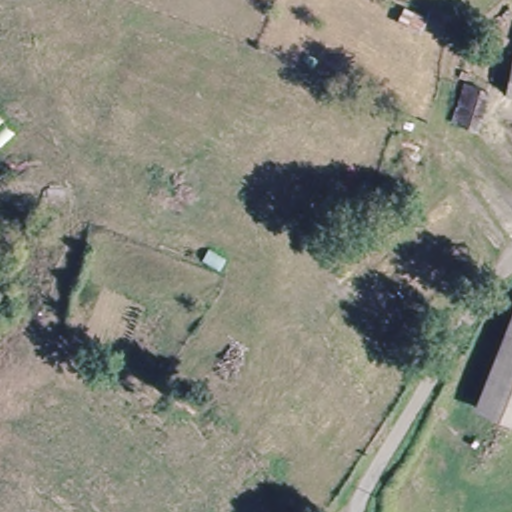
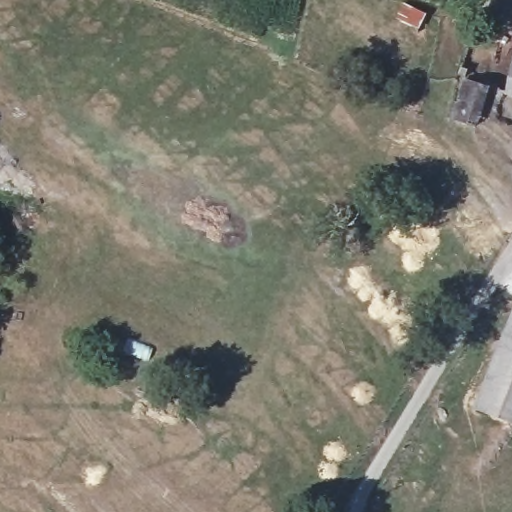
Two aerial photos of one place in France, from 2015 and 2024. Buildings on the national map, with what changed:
unchanged [(512,58),(512,94),(486,87),(493,57),(512,58)]
unchanged [(512,299),(512,421),(471,404),(512,299)]

